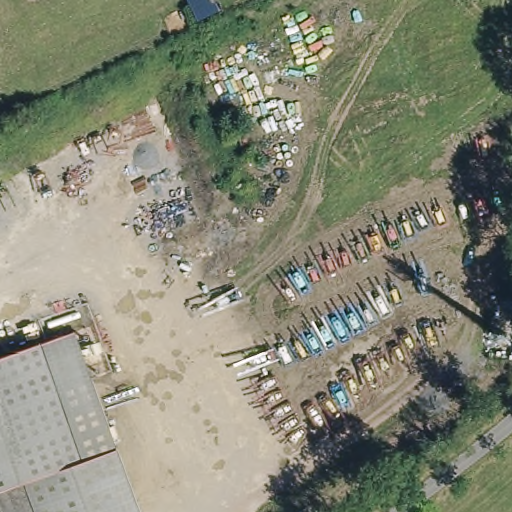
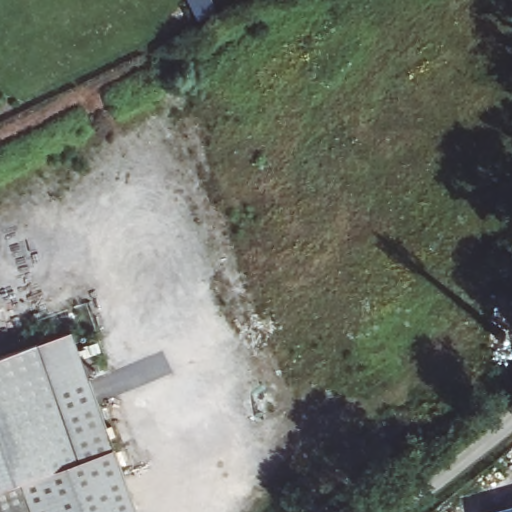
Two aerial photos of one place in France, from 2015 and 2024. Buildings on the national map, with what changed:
unchanged [(78,458),(38,342),(71,332),(114,449),(136,512),(30,512),(18,479),(78,458)]
unchanged [(78,458),(18,479),(30,512),(0,512),(0,355),(38,342),(78,458)]
new [(512,512),(489,512),(512,506),(512,512)]

